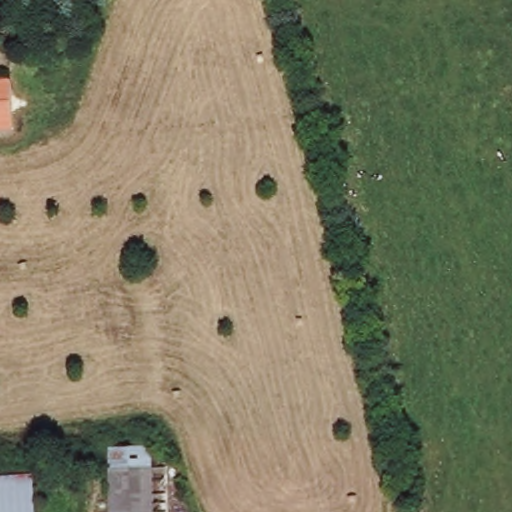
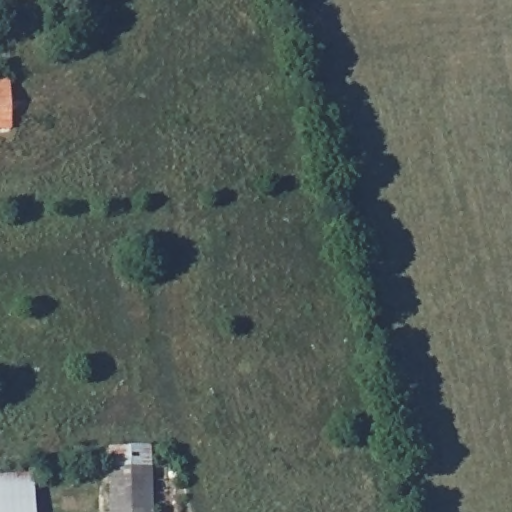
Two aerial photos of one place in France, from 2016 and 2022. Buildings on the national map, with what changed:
unchanged [(10,78),(12,125),(0,126),(0,79),(10,78)]
unchanged [(146,442),(158,512),(117,512),(108,449),(146,442)]
unchanged [(38,512),(0,512),(0,479),(32,473),(38,512)]

